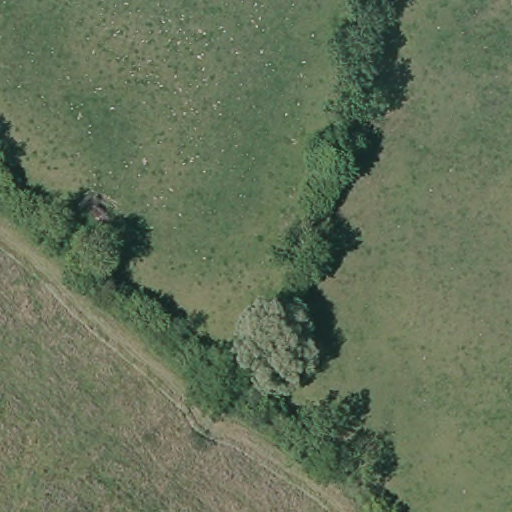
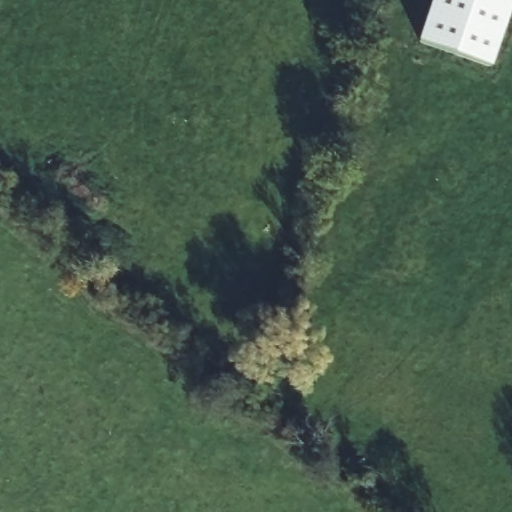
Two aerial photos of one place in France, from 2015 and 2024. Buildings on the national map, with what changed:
new [(492,67),(418,42),(433,0),(512,0),(512,10),(492,67)]

